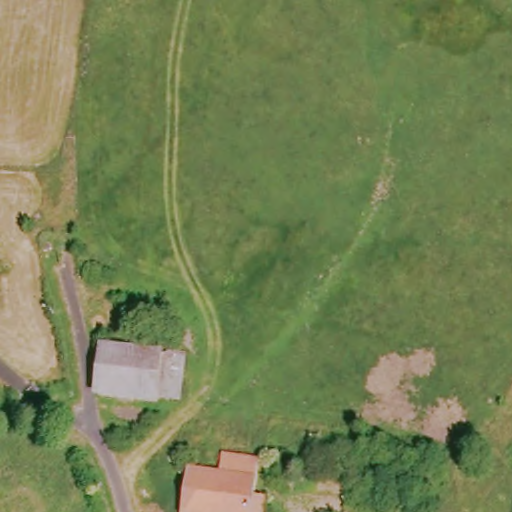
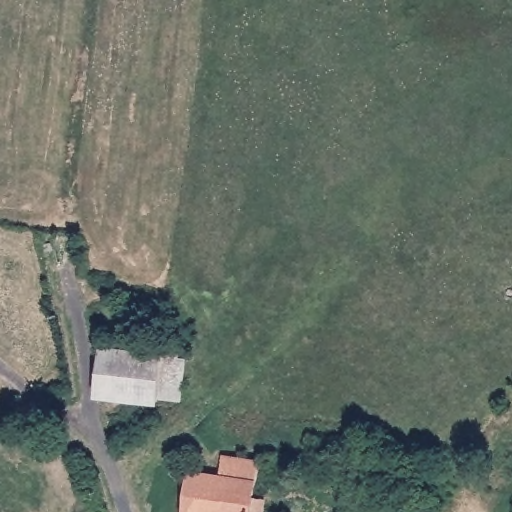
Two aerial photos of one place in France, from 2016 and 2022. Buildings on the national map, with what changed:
unchanged [(167,405),(109,398),(112,350),(173,355),(167,405)]
unchanged [(221,474),(224,455),(261,460),(257,495),(269,497),(267,512),(185,512),(190,472),(221,474)]

